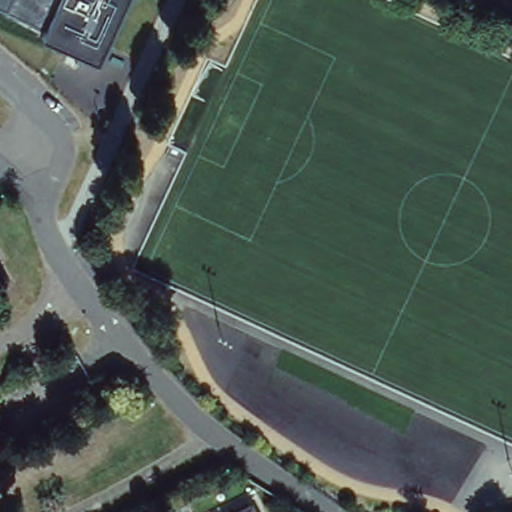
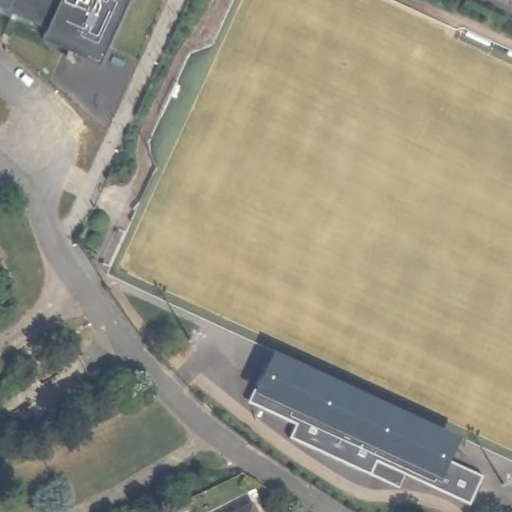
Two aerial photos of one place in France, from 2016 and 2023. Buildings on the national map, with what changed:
unchanged [(47,45),(52,34),(0,10),(0,0),(132,0),(102,69),(47,45)]
new [(470,433),(459,460),(487,473),(475,500),(385,455),(377,470),(289,432),(298,416),(254,396),(269,366),(276,370),(285,348),(470,433)]
unchanged [(260,512),(228,512),(253,500),(260,512)]

